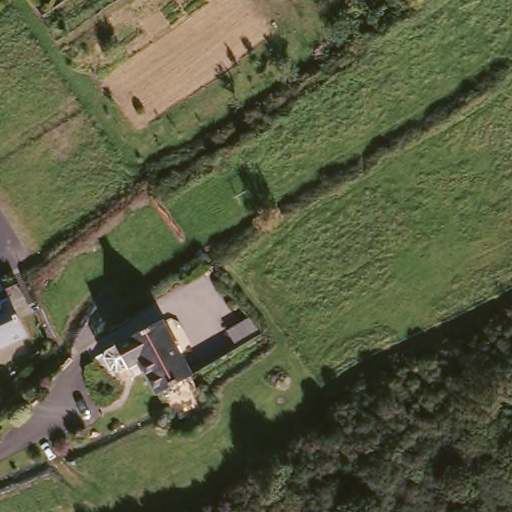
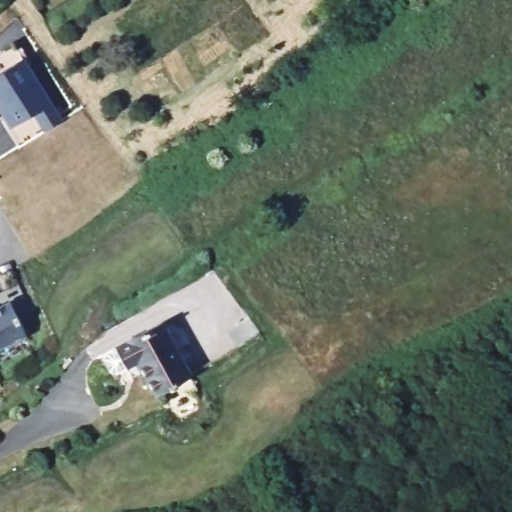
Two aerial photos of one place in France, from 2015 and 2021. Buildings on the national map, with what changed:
new [(26,55),(0,72),(0,45),(14,34),(26,55)]
new [(64,118),(31,138),(22,124),(19,127),(0,96),(0,72),(26,55),(64,118)]
new [(22,124),(31,138),(22,143),(0,106),(0,96),(19,127),(22,124)]
unchanged [(0,351),(0,302),(6,300),(27,340),(0,351)]
unchanged [(165,317),(188,375),(153,388),(139,353),(125,359),(116,337),(165,317)]

